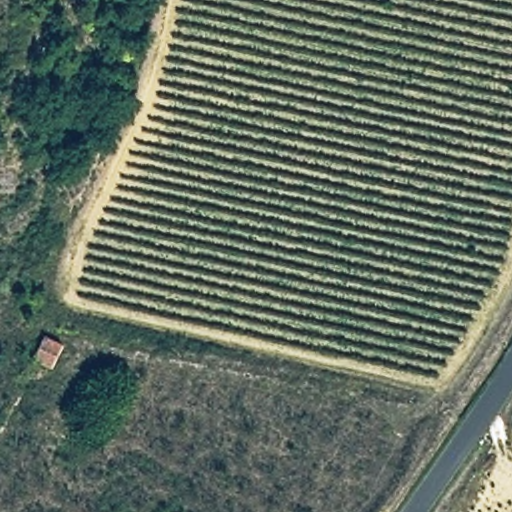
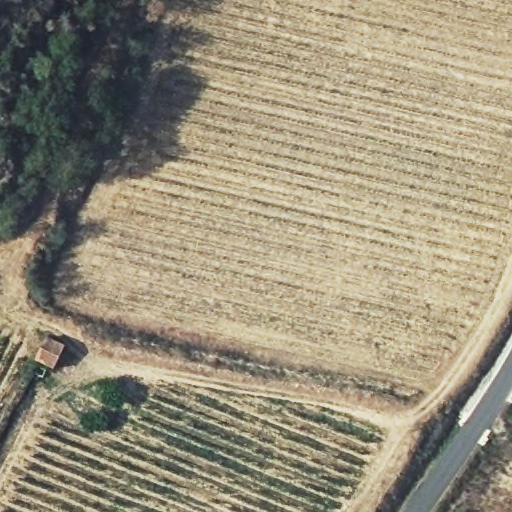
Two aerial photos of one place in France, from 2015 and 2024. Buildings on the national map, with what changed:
unchanged [(50,373),(32,362),(45,339),(62,347),(50,373)]

